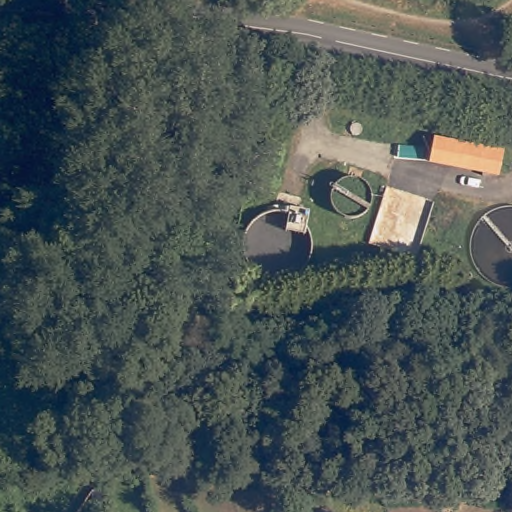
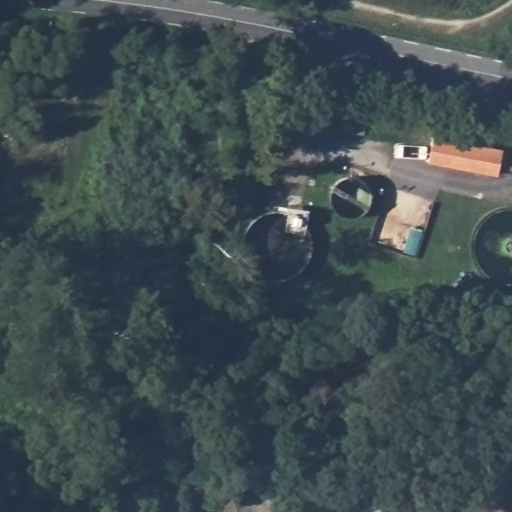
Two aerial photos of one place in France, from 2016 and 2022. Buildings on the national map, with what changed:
unchanged [(421,162),(428,133),(496,145),(492,176),(421,162)]
unchanged [(284,177),(298,180),(291,210),(278,206),(284,177)]

